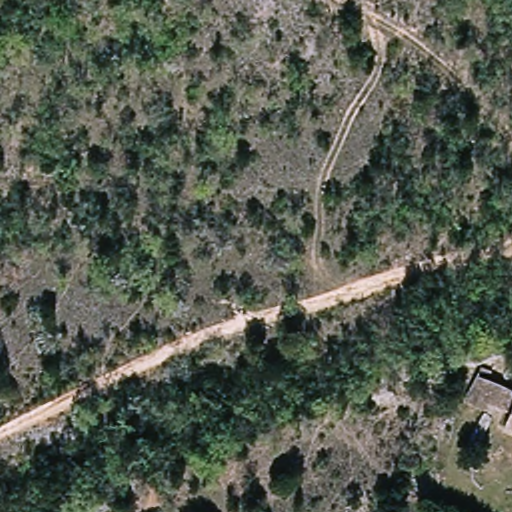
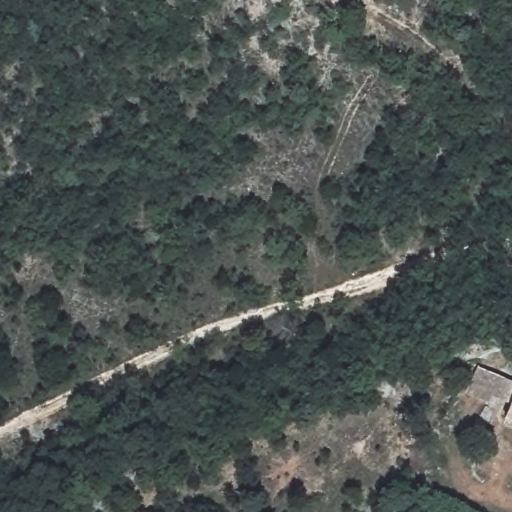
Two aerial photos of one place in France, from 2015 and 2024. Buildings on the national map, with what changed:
unchanged [(512,419),(502,416),(507,404),(466,388),(475,367),(512,380),(512,419)]

